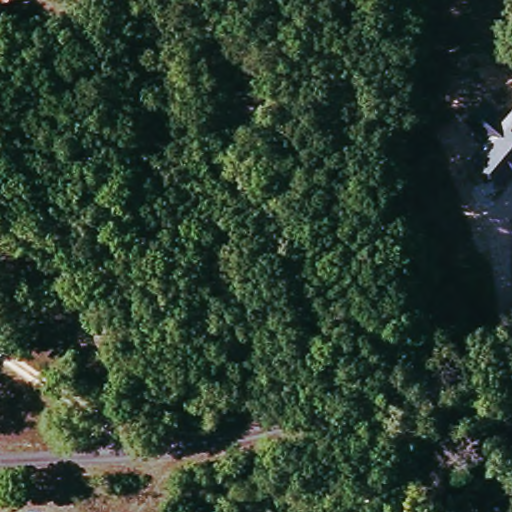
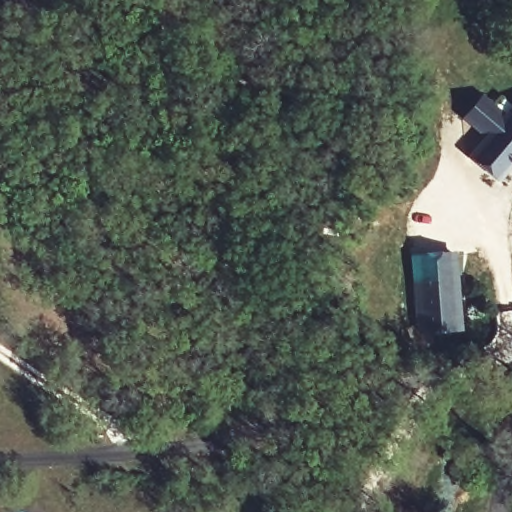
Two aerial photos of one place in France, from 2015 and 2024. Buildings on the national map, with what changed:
unchanged [(475,156),(512,110),(512,170),(502,182),(475,156)]
new [(459,251),(463,331),(415,335),(410,254),(459,251)]

